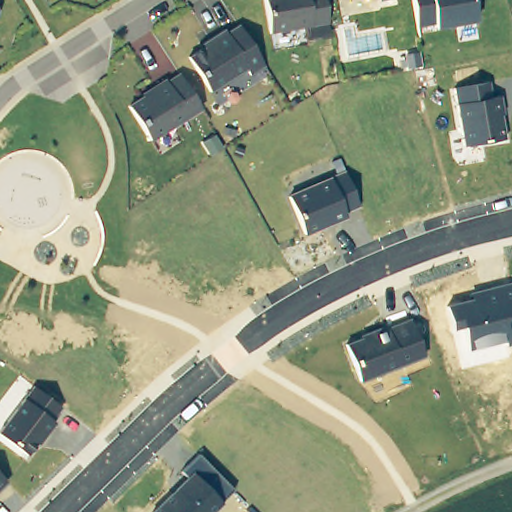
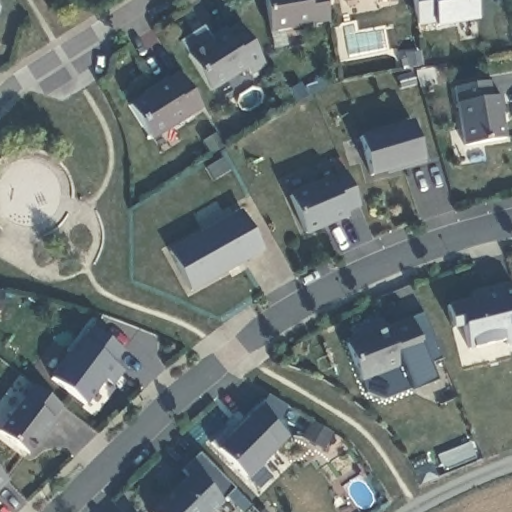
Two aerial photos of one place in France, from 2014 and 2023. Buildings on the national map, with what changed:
unchanged [(270,36),(263,0),(323,0),(328,26),(270,36)]
unchanged [(379,0),(397,0),(380,3),(379,0)]
unchanged [(437,29),(436,22),(419,26),(414,0),(473,0),(477,22),(437,29)]
unchanged [(265,69),(251,78),(247,71),(210,94),(188,60),(211,45),(209,42),(225,33),(226,36),(239,28),(265,69)]
unchanged [(184,83),(194,99),(201,111),(150,143),(129,110),(152,95),(151,93),(166,83),(167,85),(180,77),(184,83)]
unchanged [(493,97),(500,96),(507,137),(465,146),(455,88),(491,81),(493,97)]
new [(359,136),(413,120),(424,161),(372,176),(359,136)]
unchanged [(346,212),(349,218),(306,235),(290,195),(345,171),(361,206),(346,212)]
new [(169,251),(241,210),(264,250),(192,291),(169,251)]
unchanged [(506,340),(469,350),(465,325),(453,329),(448,306),(474,298),(472,293),(512,284),(512,344),(507,346),(506,340)]
unchanged [(347,343),(381,329),(383,331),(411,320),(425,313),(442,358),(415,369),(411,363),(426,357),(362,382),(347,343)]
new [(51,378),(94,328),(122,351),(113,362),(124,373),(112,387),(104,380),(86,404),(51,378)]
unchanged [(52,419),(56,423),(29,455),(0,433),(0,431),(33,386),(61,407),(52,419)]
new [(218,448),(257,406),(288,438),(248,478),(218,448)]
unchanged [(221,501),(224,504),(214,512),(152,512),(188,476),(182,471),(201,455),(234,489),(221,501)]
unchanged [(0,490),(0,474),(8,482),(0,490)]

